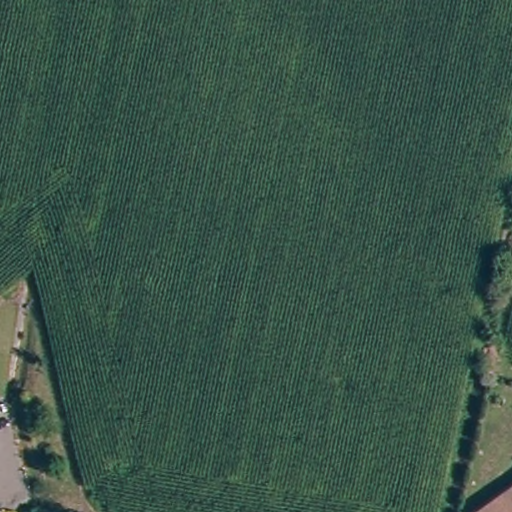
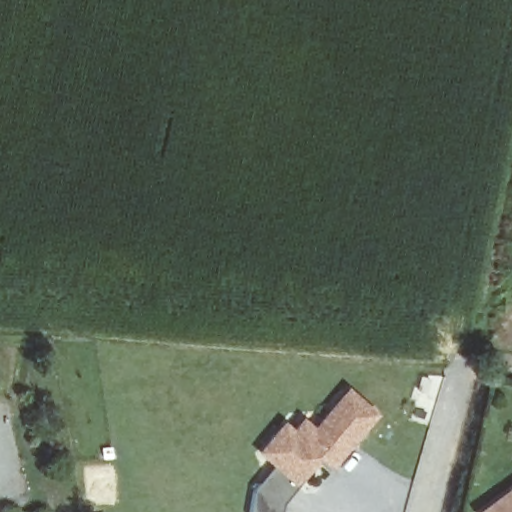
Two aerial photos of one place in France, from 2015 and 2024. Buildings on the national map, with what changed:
new [(330,447),(292,488),(288,507),(256,501),(262,473),(268,467),(255,455),(298,408),(317,425),(363,375),(389,400),(341,451),(338,454),(330,447)]
unchanged [(481,512),(478,508),(512,482),(512,512),(481,512)]

